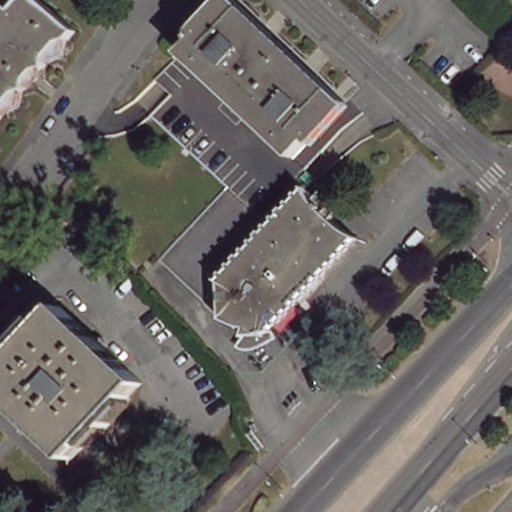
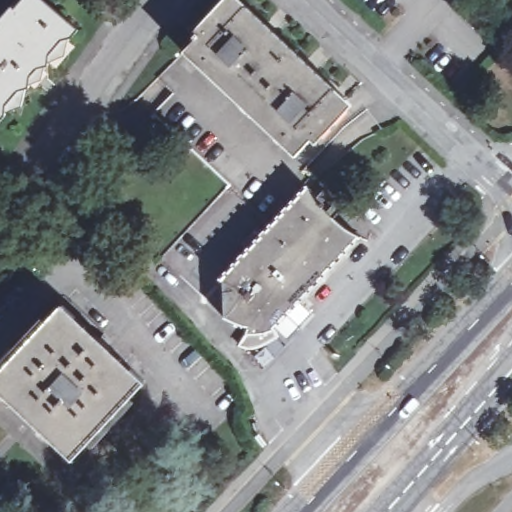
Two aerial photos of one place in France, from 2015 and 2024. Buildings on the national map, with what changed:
unchanged [(8,32),(4,29),(20,10),(24,13),(36,0),(48,0),(88,34),(80,42),(71,44),(58,60),(58,70),(47,73),(39,82),(38,92),(28,96),(15,111),(14,119),(8,127),(0,120),(0,42),(8,32)]
unchanged [(241,1),(353,103),(304,155),(193,52),(241,1)]
unchanged [(272,325),(273,329),(259,332),(249,332),(248,325),(243,325),(225,316),(233,309),(226,305),(224,297),(230,293),(234,296),(239,300),(244,294),(226,281),(311,191),(330,217),(358,236),(272,325)]
unchanged [(68,305),(148,382),(78,457),(0,385),(0,376),(68,305)]

